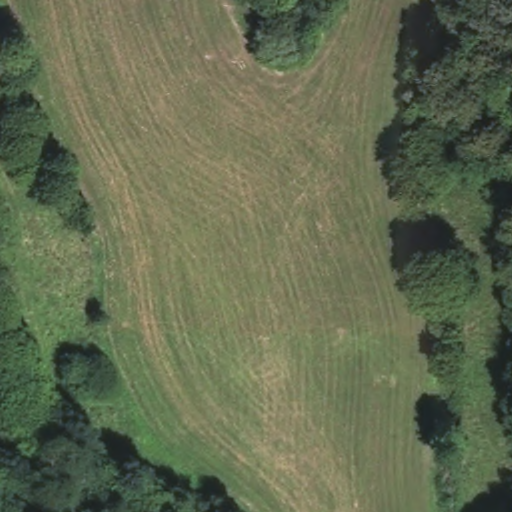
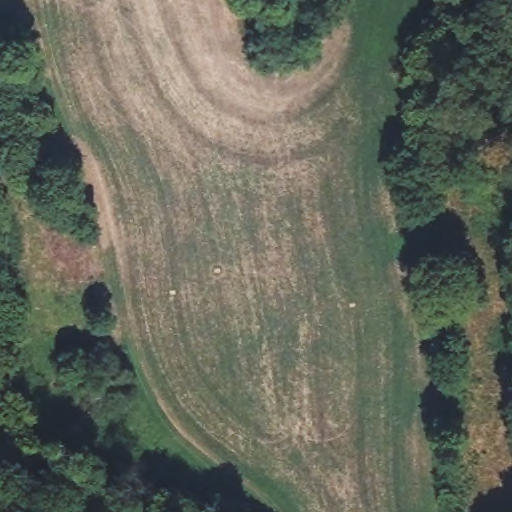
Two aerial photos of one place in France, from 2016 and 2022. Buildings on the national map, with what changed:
unchanged [(5,234),(0,233),(0,210),(4,210),(5,234)]

